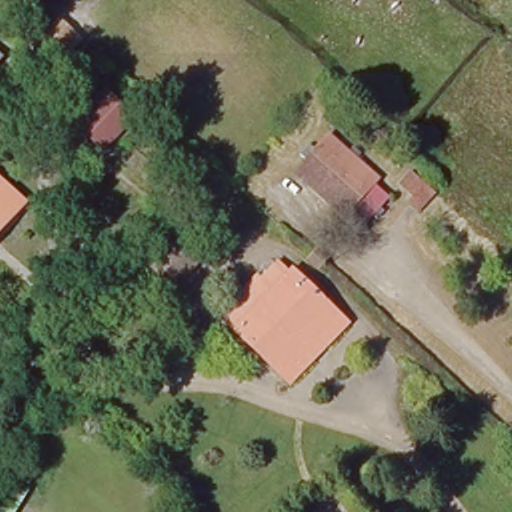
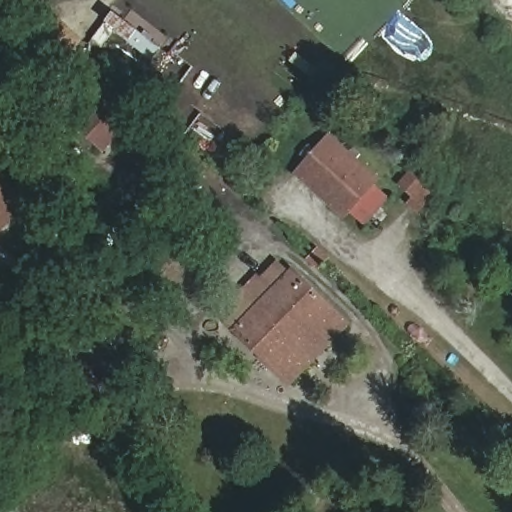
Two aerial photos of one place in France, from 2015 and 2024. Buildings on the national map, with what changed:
unchanged [(73,126),(104,86),(136,115),(106,156),(73,126)]
unchanged [(282,172),(325,128),(376,174),(372,185),(392,198),(359,236),(282,172)]
unchanged [(0,231),(0,173),(26,193),(0,231)]
unchanged [(198,235),(172,266),(146,244),(173,215),(198,235)]
unchanged [(237,310),(230,304),(272,252),(352,324),(288,393),(222,325),(237,310)]

